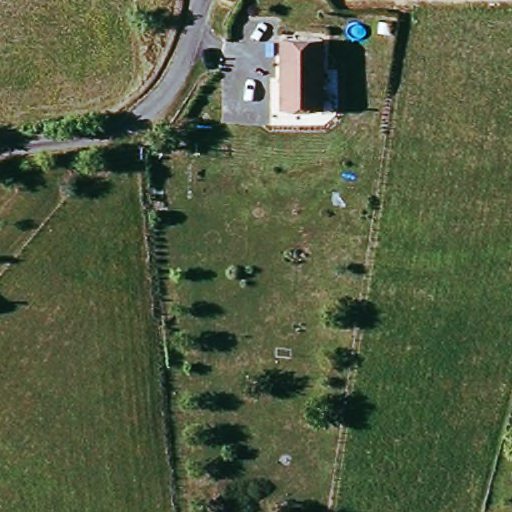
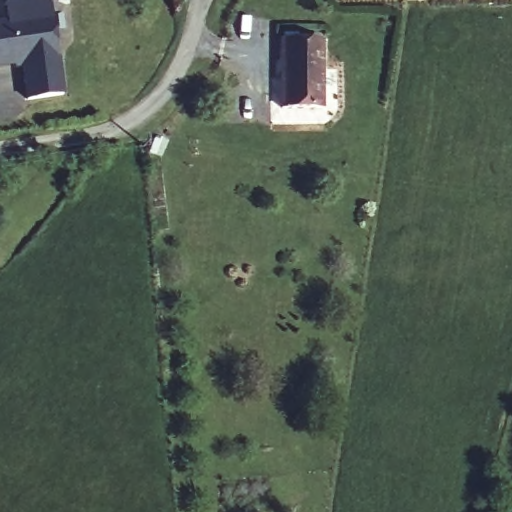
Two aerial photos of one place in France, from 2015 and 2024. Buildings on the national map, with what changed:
new [(34,0),(51,0),(65,95),(27,100),(22,66),(0,69),(0,21),(7,20),(5,4),(34,0)]
unchanged [(284,111),(283,58),(283,41),(325,41),(325,59),(325,109),(284,111)]

